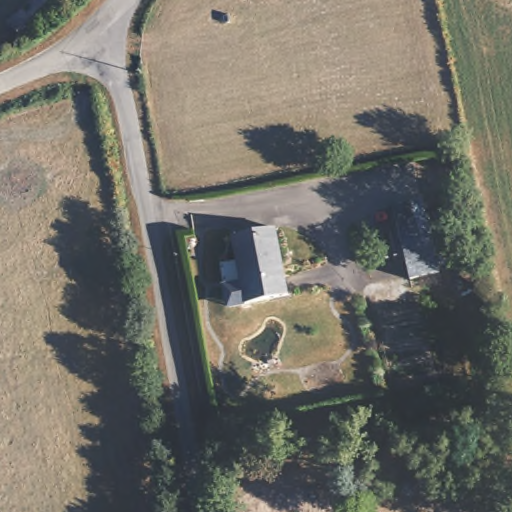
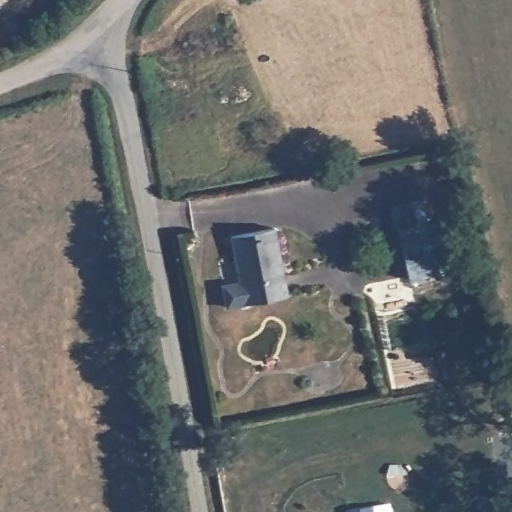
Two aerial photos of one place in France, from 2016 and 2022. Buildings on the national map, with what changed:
unchanged [(38,0),(58,0),(65,8),(30,39),(14,22),(38,0)]
unchanged [(421,204),(436,275),(405,281),(391,210),(421,204)]
unchanged [(240,289),(230,243),(274,234),(286,300),(244,310),(244,309),(227,313),(222,292),(240,289)]
unchanged [(477,483),(477,500),(459,499),(460,482),(477,483)]
unchanged [(512,512),(501,512),(500,505),(512,504),(512,512)]

